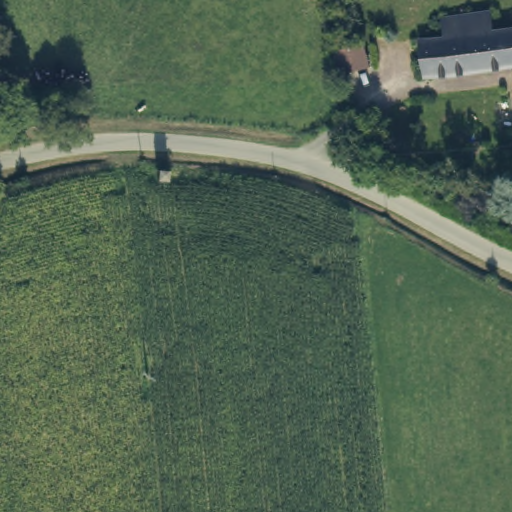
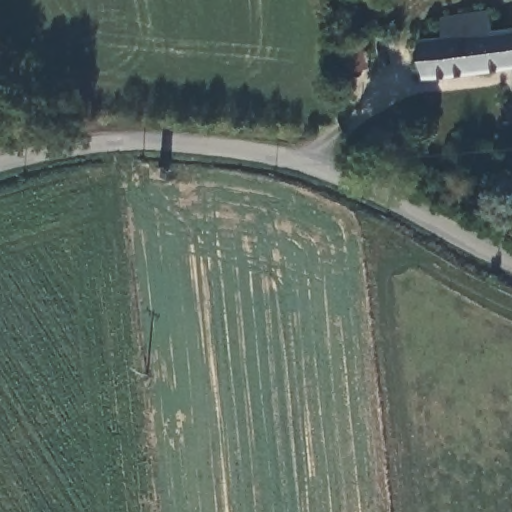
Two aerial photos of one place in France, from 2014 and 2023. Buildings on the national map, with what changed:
unchanged [(512,27),(512,66),(421,75),(417,37),(444,34),(442,12),(490,7),(493,28),(512,27)]
unchanged [(367,46),(371,66),(342,71),(338,52),(367,46)]

